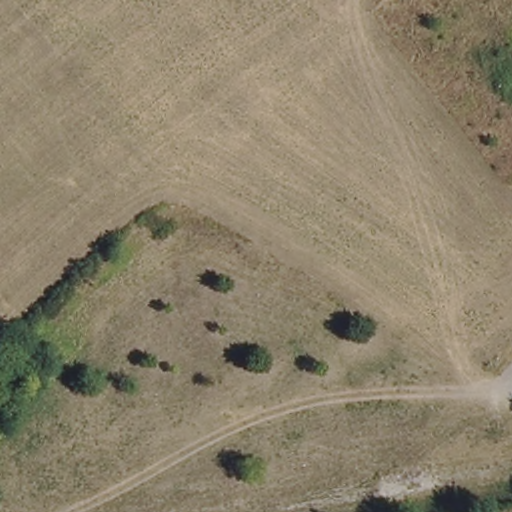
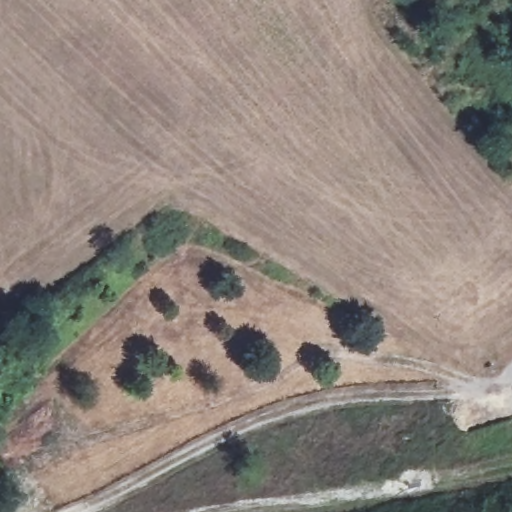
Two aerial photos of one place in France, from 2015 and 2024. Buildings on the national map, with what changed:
[]

